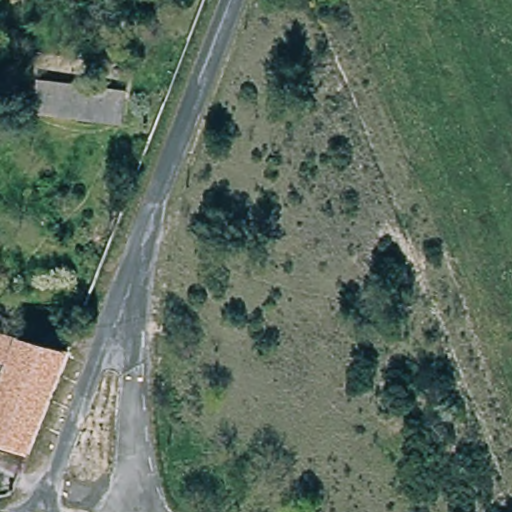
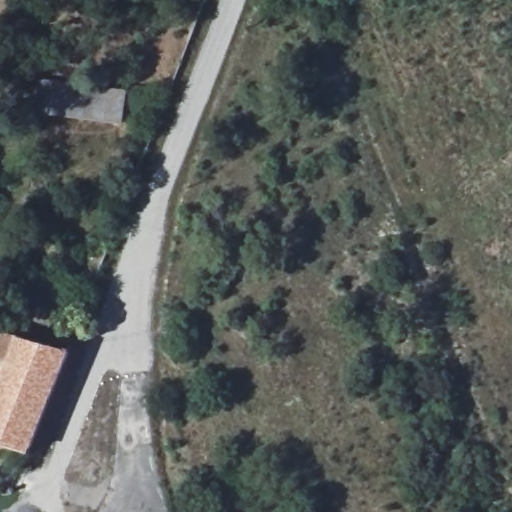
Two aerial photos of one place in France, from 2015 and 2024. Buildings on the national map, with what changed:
unchanged [(24,112),(30,79),(133,91),(127,123),(24,112)]
unchanged [(0,447),(0,375),(3,366),(0,364),(0,333),(73,352),(37,457),(0,447)]

